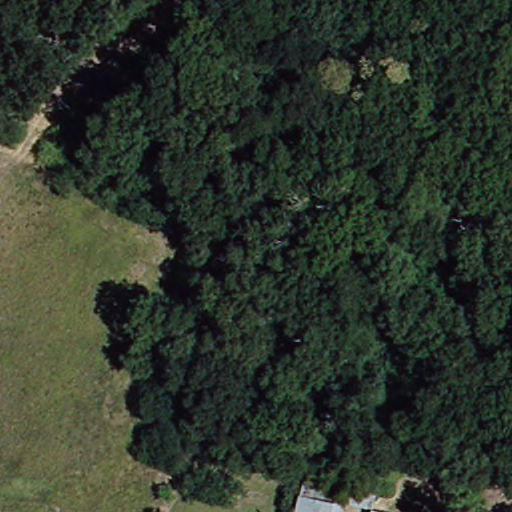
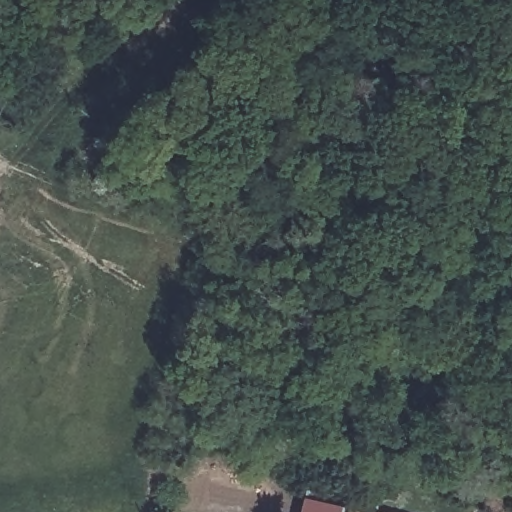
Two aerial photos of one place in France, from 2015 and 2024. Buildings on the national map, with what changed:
unchanged [(323,512),(289,512),(292,498),(325,506),(323,512)]

